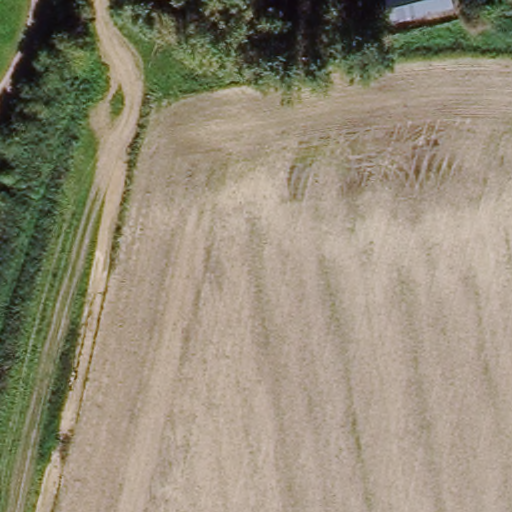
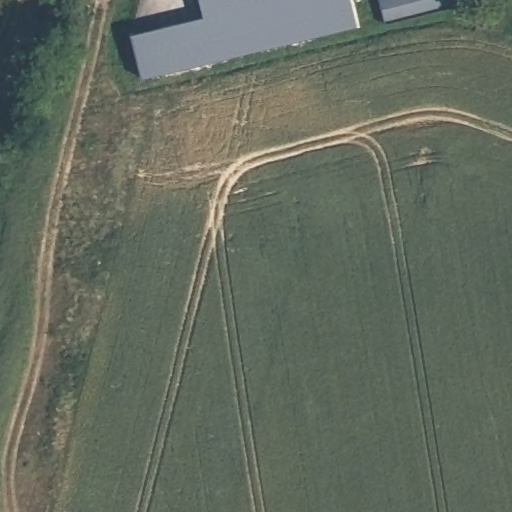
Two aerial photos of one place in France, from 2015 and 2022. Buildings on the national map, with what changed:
new [(358,26),(144,80),(132,35),(205,17),(201,0),(352,0),(358,26)]
unchanged [(456,10),(391,27),(384,0),(454,0),(456,10)]

